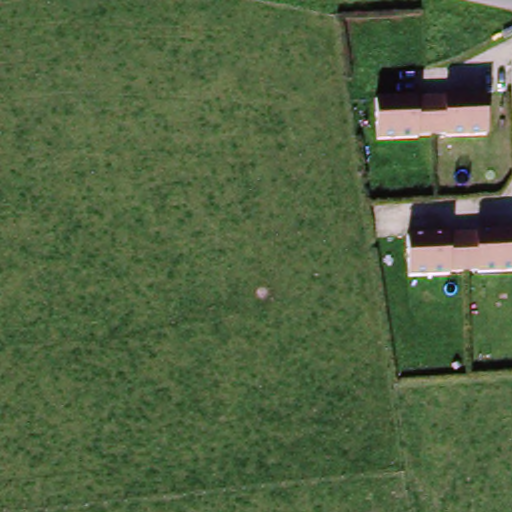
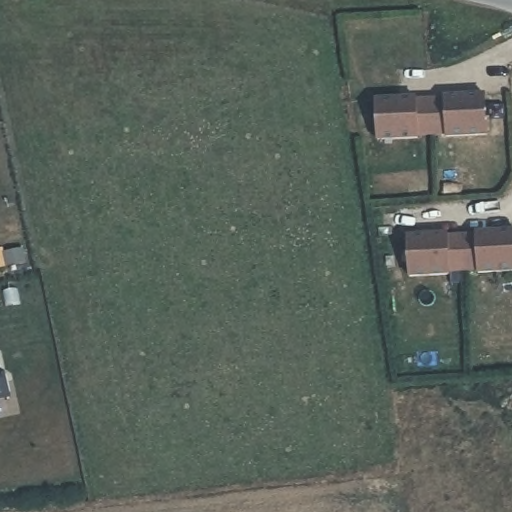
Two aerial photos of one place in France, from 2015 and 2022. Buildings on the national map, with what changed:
unchanged [(416,95),(416,99),(444,96),(443,93),(485,91),(489,137),(446,139),(444,132),(420,135),(420,142),(377,144),(374,97),(416,95)]
unchanged [(448,239),(475,236),(474,228),(512,229),(512,273),(477,275),(476,268),(451,270),(451,276),(407,278),(405,233),(447,230),(448,239)]
new [(3,373),(8,377),(12,398),(0,400),(0,360),(3,373)]

